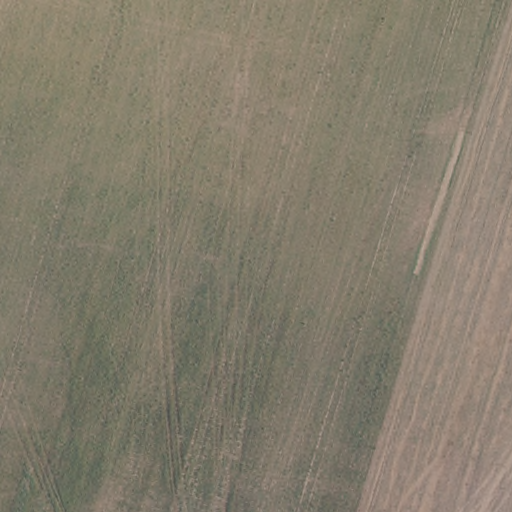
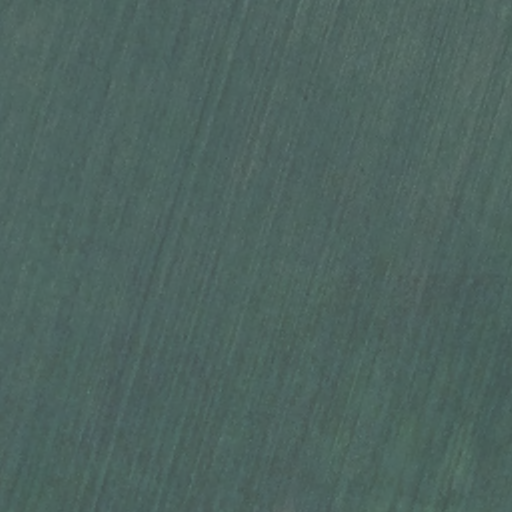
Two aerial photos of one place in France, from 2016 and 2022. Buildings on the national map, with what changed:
[]

